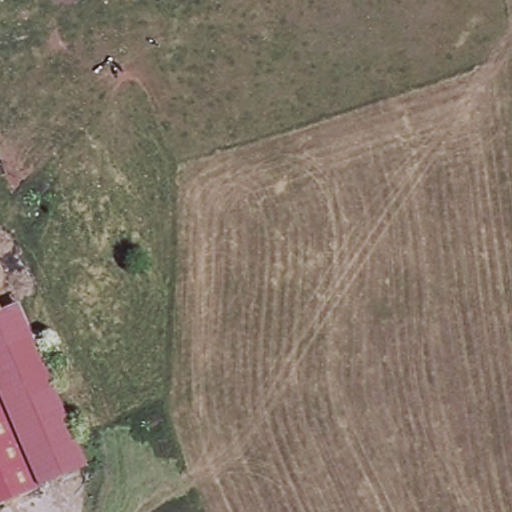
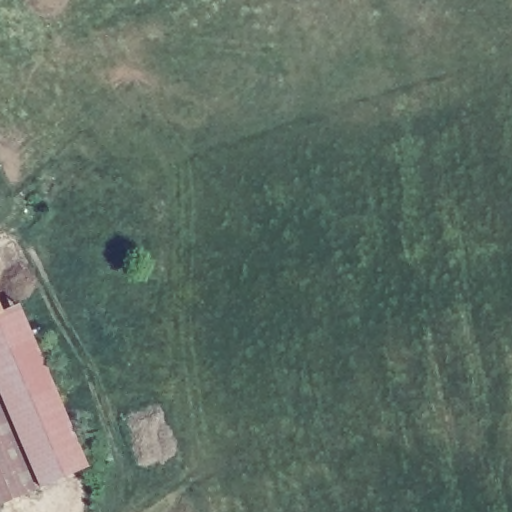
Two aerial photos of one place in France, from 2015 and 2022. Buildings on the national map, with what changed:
unchanged [(20,306),(91,470),(0,506),(0,318),(1,317),(20,306)]

